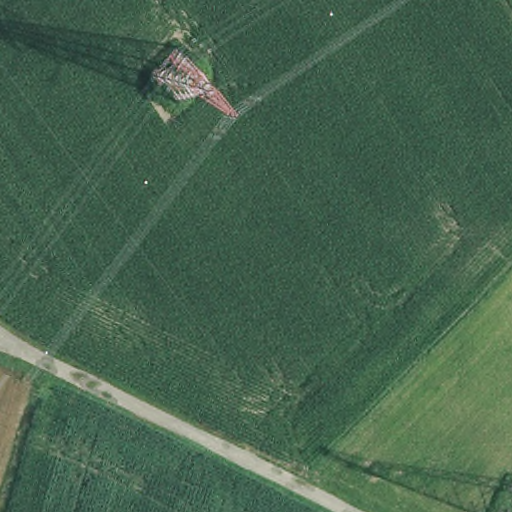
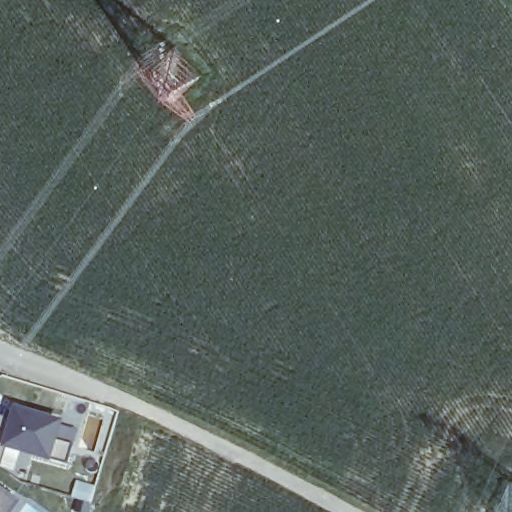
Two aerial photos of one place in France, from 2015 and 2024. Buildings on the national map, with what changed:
new [(67,465),(51,460),(50,463),(6,451),(0,469),(0,417),(10,420),(13,408),(62,421),(57,441),(72,445),(67,465)]
new [(12,500),(3,512),(0,512),(0,490),(12,500)]

